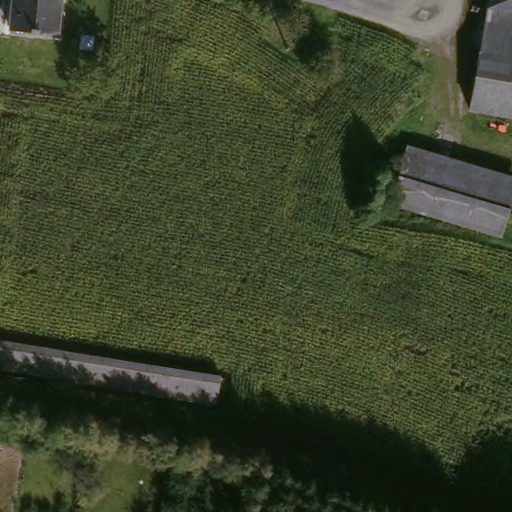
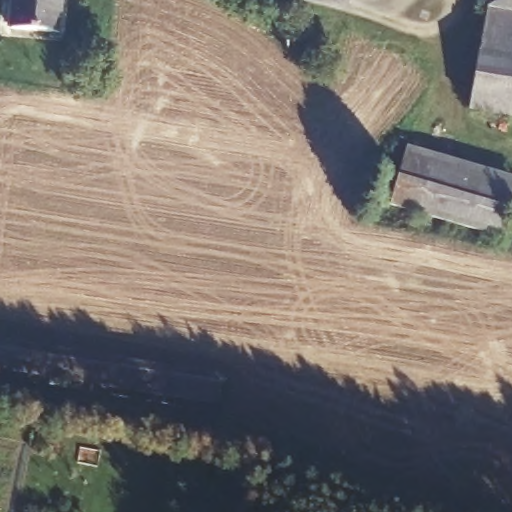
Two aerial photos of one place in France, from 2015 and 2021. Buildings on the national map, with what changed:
unchanged [(13,0),(59,0),(57,35),(11,30),(13,0)]
unchanged [(486,0),(512,0),(512,15),(487,12),(484,11),(486,0)]
unchanged [(512,121),(469,115),(487,12),(512,15),(512,121)]
unchanged [(512,182),(512,188),(501,232),(392,205),(404,154),(512,182)]
unchanged [(31,344),(61,349),(221,378),(215,412),(56,384),(0,373),(0,338),(31,344)]

